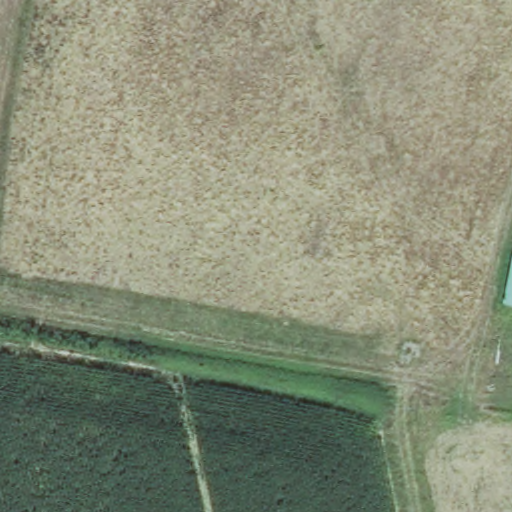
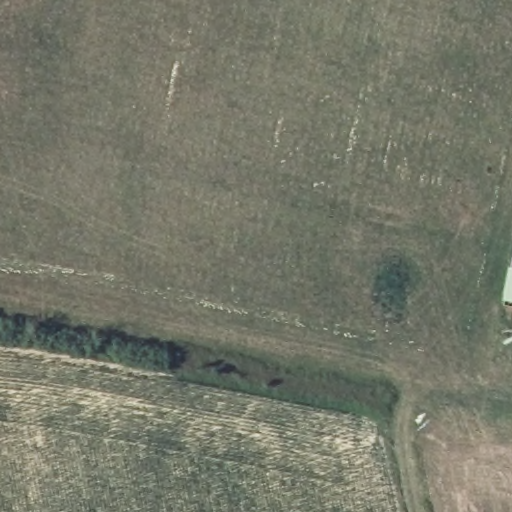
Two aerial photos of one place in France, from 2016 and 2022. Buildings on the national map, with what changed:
unchanged [(512,255),(512,309),(500,307),(511,255),(512,255)]

